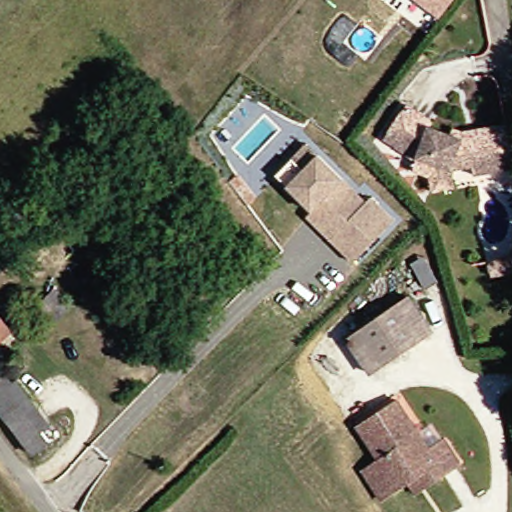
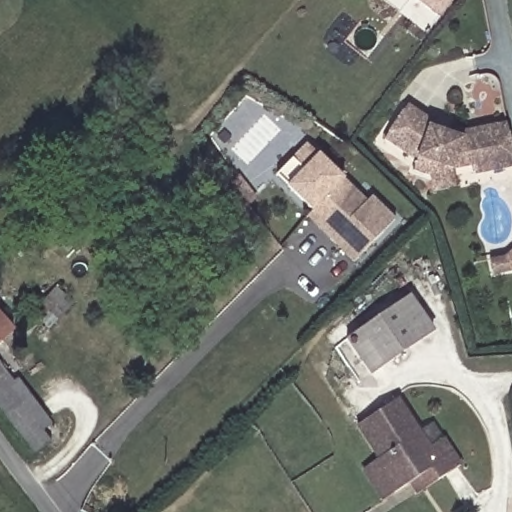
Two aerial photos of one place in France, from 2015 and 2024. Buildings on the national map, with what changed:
unchanged [(436,19),(419,5),(413,0),(453,0),(436,19)]
unchanged [(432,195),(428,180),(415,167),(417,157),(385,136),(407,101),(433,119),(431,123),(450,135),(452,130),(460,135),(470,133),(503,126),(510,158),(512,167),(512,169),(472,177),(471,169),(450,173),(453,190),(432,195)]
unchanged [(311,208),(286,184),(275,173),(305,142),(317,153),(364,199),(369,194),(392,217),(352,259),(328,236),(305,213),(311,208)]
unchanged [(507,254),(512,249),(512,268),(494,272),(493,266),(491,257),(507,254)]
unchanged [(74,303),(59,319),(53,314),(44,323),(34,313),(57,289),(74,303)]
unchanged [(343,336),(411,290),(437,332),(370,376),(343,336)]
unchanged [(0,341),(0,324),(8,333),(0,341)]
unchanged [(14,383),(31,406),(23,412),(45,443),(31,454),(0,411),(0,373),(9,385),(14,383)]
unchanged [(446,433),(463,459),(412,496),(405,485),(380,503),(360,470),(377,460),(355,428),(397,401),(426,447),(446,433)]

